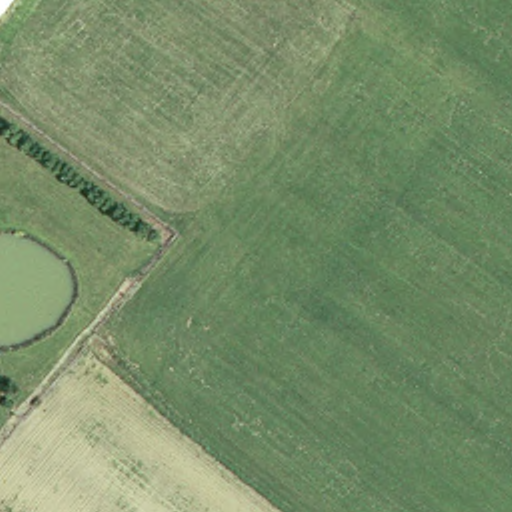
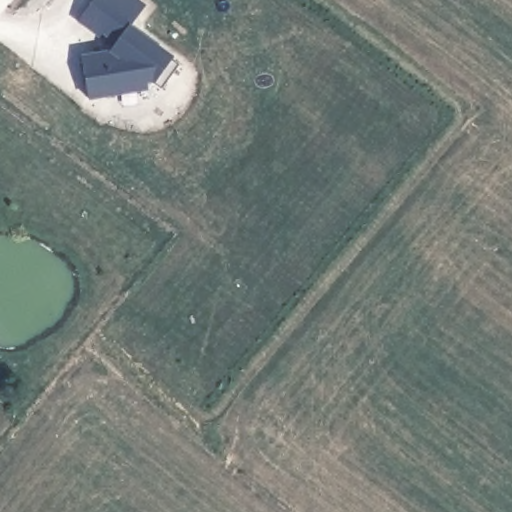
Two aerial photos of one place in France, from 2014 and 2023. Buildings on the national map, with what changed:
new [(128,25),(173,58),(177,65),(160,88),(153,86),(150,83),(146,85),(148,92),(90,102),(82,56),(107,53),(112,47),(76,22),(92,0),(139,0),(145,4),(128,25)]

